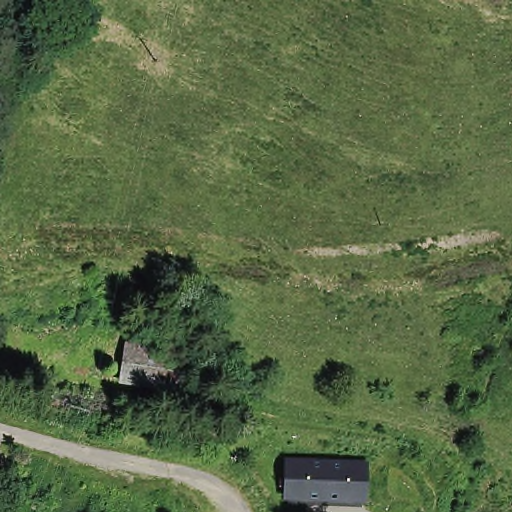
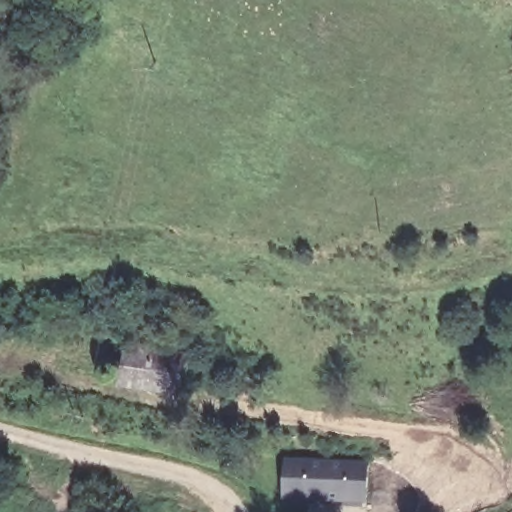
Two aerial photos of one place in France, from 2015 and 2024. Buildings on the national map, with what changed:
unchanged [(177,397),(119,390),(123,352),(182,361),(177,397)]
unchanged [(362,501),(322,501),(322,461),(364,460),(362,501)]
unchanged [(322,501),(285,501),(285,461),(322,461),(322,501)]

